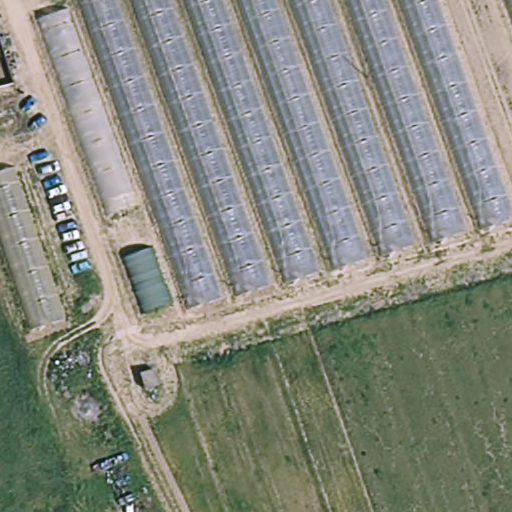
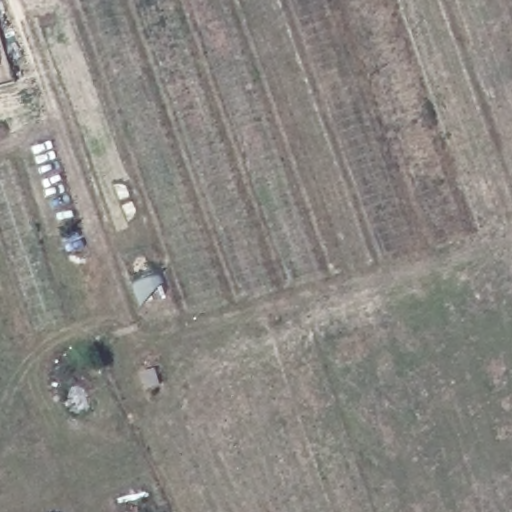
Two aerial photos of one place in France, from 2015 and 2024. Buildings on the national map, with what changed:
demolished [(144,325),(23,0),(512,0),(512,221),(144,325)]
unchanged [(164,398),(151,402),(146,386),(159,382),(164,398)]

